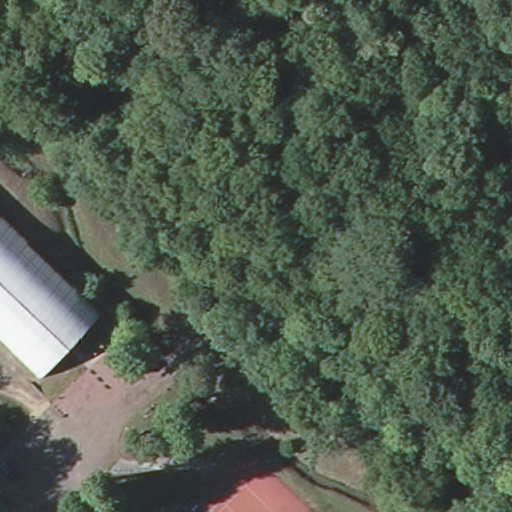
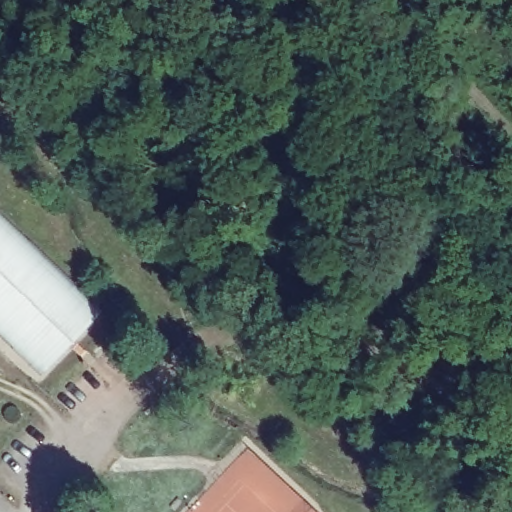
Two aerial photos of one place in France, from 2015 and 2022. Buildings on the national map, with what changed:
unchanged [(99,303),(35,368),(0,334),(0,212),(99,303)]

